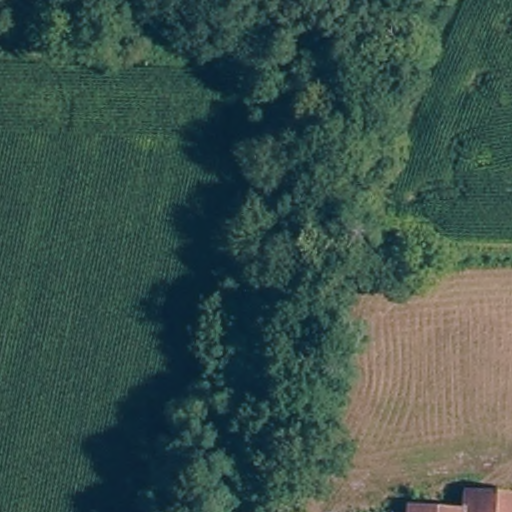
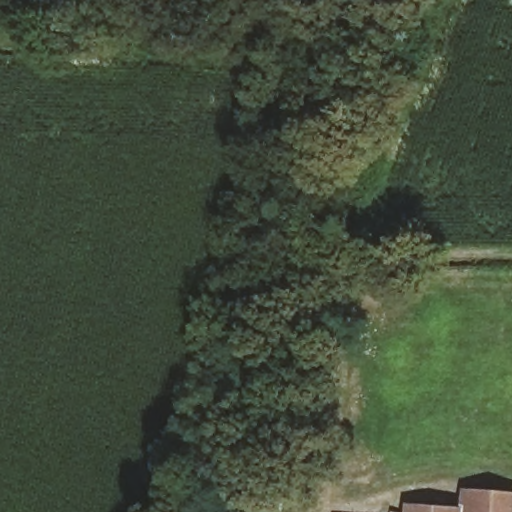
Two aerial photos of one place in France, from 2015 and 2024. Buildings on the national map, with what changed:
unchanged [(409,504),(469,507),(470,491),(512,493),(512,512),(408,512),(409,504)]

